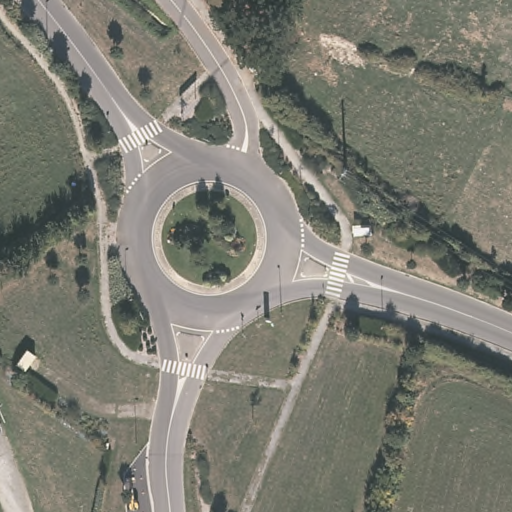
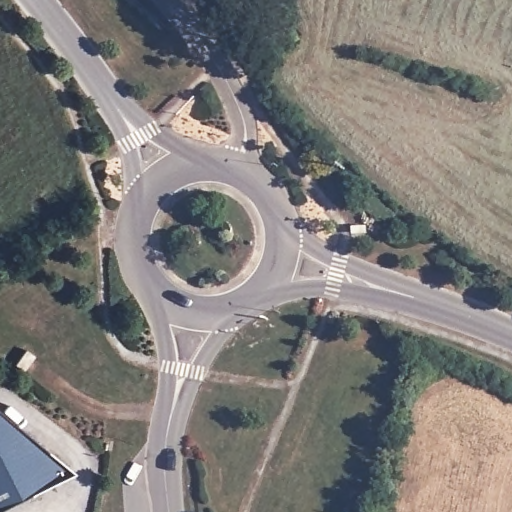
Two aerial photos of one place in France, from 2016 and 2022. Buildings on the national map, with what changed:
new [(0,507),(0,412),(72,471),(0,507)]

